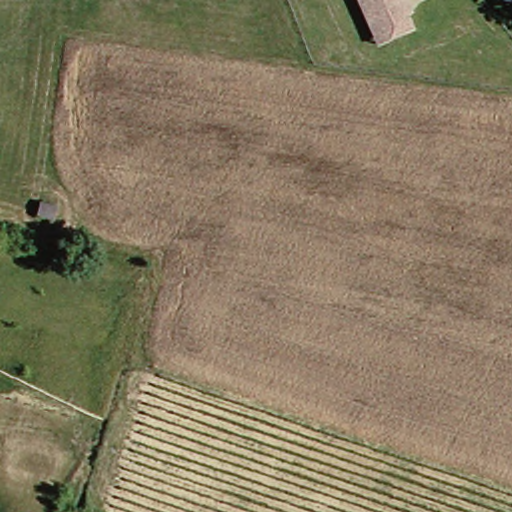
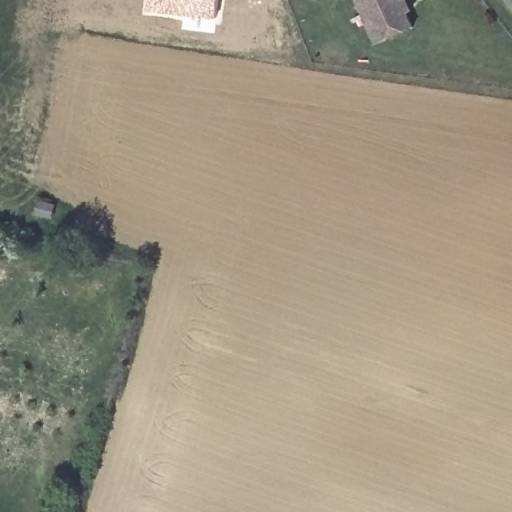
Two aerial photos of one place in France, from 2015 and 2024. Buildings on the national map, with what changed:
new [(218,17),(148,11),(149,0),(221,0),(218,17)]
unchanged [(379,34),(361,0),(414,0),(420,14),(416,15),(423,30),(402,42),(388,50),(379,34)]
unchanged [(47,206),(63,207),(61,224),(46,221),(47,206)]

